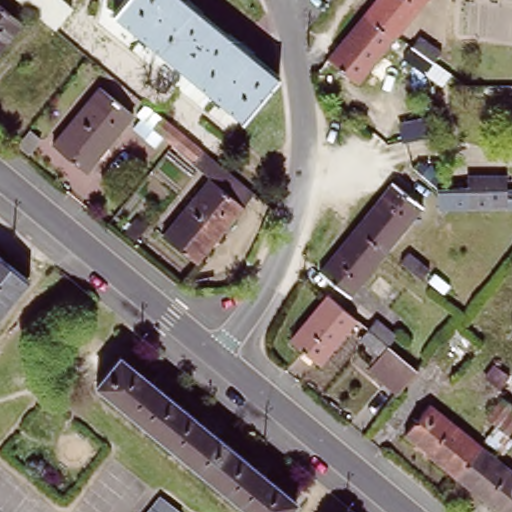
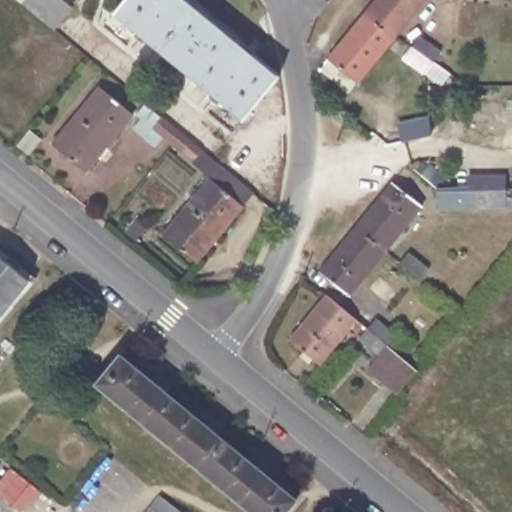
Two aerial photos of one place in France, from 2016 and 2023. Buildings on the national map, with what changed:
unchanged [(56,32),(17,0),(61,0),(74,11),(56,32)]
unchanged [(240,123),(110,16),(123,0),(178,0),(270,75),(276,80),(272,85),(240,123)]
unchanged [(427,0),(394,40),(365,17),(378,0),(427,0)]
demolished [(0,52),(0,7),(22,26),(0,52)]
unchanged [(394,40),(357,84),(328,62),(365,17),(394,40)]
unchanged [(425,72),(403,57),(410,46),(417,36),(438,50),(432,60),(425,72)]
unchanged [(100,90),(133,117),(86,173),(53,147),(100,90)]
unchanged [(193,162),(173,146),(154,130),(162,120),(181,137),(201,153),(193,162)]
unchanged [(440,208),(438,176),(508,175),(508,189),(512,189),(512,206),(440,208)]
unchanged [(210,181),(243,209),(197,263),(164,237),(210,181)]
unchanged [(422,208),(386,252),(356,227),(393,184),(422,208)]
unchanged [(356,227),(386,252),(348,297),(336,287),(319,273),(356,227)]
unchanged [(425,257),(417,267),(397,251),(405,242),(425,257)]
unchanged [(0,312),(0,263),(24,282),(0,312)]
unchanged [(327,297),(356,321),(320,366),(290,342),(327,297)]
unchanged [(400,394),(371,370),(380,357),(359,340),(367,330),(376,321),(396,337),(388,347),(418,371),(400,394)]
unchanged [(296,502),(288,512),(250,512),(98,388),(121,360),(296,502)]
demolished [(505,430),(496,422),(486,414),(502,395),(512,403),(512,421),(505,430)]
demolished [(480,447),(455,477),(406,437),(430,407),(480,447)]
demolished [(512,474),(512,512),(497,512),(455,477),(480,447),(512,474)]
unchanged [(158,498),(175,512),(147,512),(158,498)]

